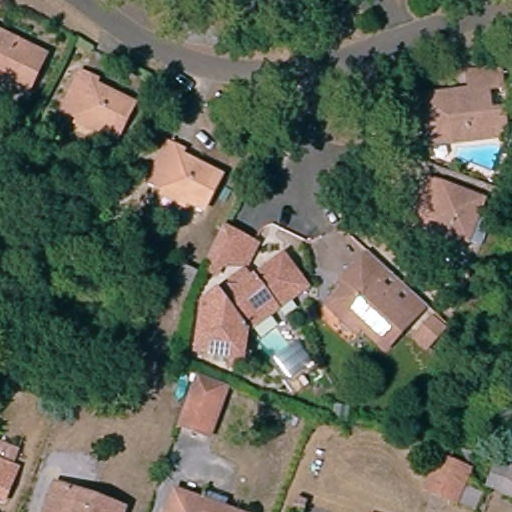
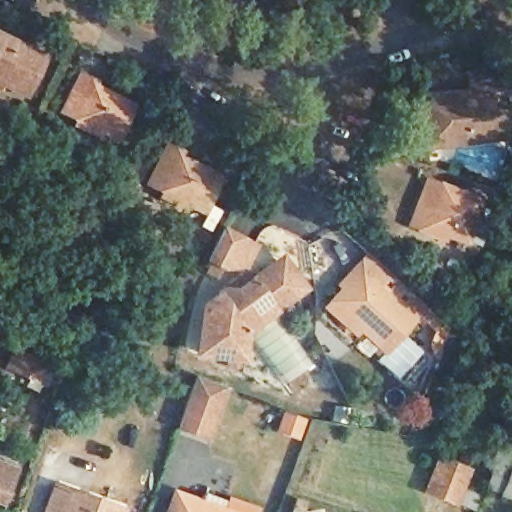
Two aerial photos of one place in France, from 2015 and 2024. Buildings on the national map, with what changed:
unchanged [(0,90),(0,40),(45,63),(25,102),(0,90)]
unchanged [(458,137),(418,140),(416,103),(458,100),(458,107),(467,106),(465,79),(498,77),(499,97),(481,98),(482,120),(501,119),(501,141),(459,145),(458,137)]
unchanged [(95,87),(91,95),(131,114),(114,146),(61,118),(79,79),(95,87)]
unchanged [(179,156),(176,162),(216,181),(199,213),(147,185),(164,148),(179,156)]
unchanged [(408,226),(417,205),(428,182),(482,204),(466,243),(450,236),(447,243),(408,226)]
unchanged [(200,299),(236,271),(232,266),(216,270),(202,268),(217,224),(257,244),(242,265),(246,271),(281,252),(307,288),(246,333),(243,363),(192,354),(200,299)]
unchanged [(382,356),(359,336),(347,346),(314,313),(362,256),(447,327),(422,358),(399,339),(382,356)]
unchanged [(195,274),(187,287),(174,282),(182,269),(195,274)]
unchanged [(190,383),(221,395),(214,409),(203,442),(173,432),(185,399),(190,383)]
unchanged [(469,470),(456,504),(425,491),(438,459),(469,470)]
unchanged [(496,500),(479,492),(491,465),(507,472),(512,474),(512,506),(496,500)]
unchanged [(4,507),(0,506),(0,470),(15,475),(4,507)]
unchanged [(51,492),(109,512),(44,512),(51,492)]
unchanged [(168,492),(195,501),(217,509),(227,512),(161,512),(168,492)]

